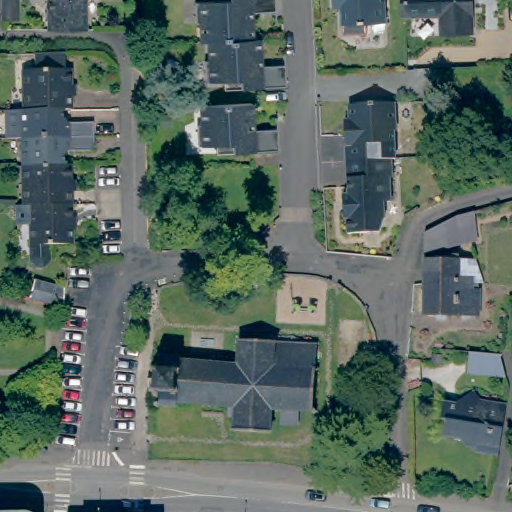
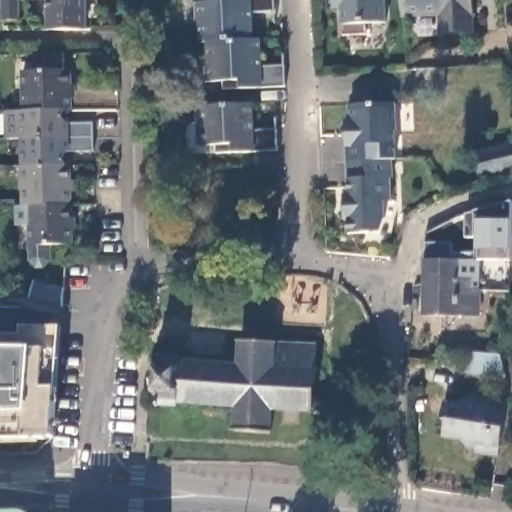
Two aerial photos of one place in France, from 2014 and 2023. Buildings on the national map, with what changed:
unchanged [(2,22),(2,0),(18,0),(18,22),(2,22)]
unchanged [(43,31),(43,0),(80,0),(80,31),(43,31)]
unchanged [(199,19),(193,20),(193,0),(273,0),(274,8),(249,8),(251,36),(208,38),(200,39),(199,19)]
unchanged [(384,2),(385,25),(366,26),(366,37),(342,38),(341,10),(334,11),(333,0),(380,0),(380,2),(384,2)]
unchanged [(438,20),(402,20),(402,0),(465,0),(466,36),(438,36),(438,20)]
unchanged [(260,61),(282,61),(283,83),(223,85),(223,76),(204,78),(203,56),(208,56),(208,38),(251,36),(258,35),(260,61)]
unchanged [(61,115),(22,116),(21,76),(34,75),(34,60),(64,59),(65,75),(68,75),(69,115),(61,115)]
unchanged [(242,130),(266,129),(268,150),(206,153),(205,145),(186,145),(186,125),(190,125),(189,106),(241,104),(242,130)]
unchanged [(394,104),(395,132),(393,132),(395,160),(391,161),(346,163),(344,123),(349,122),(348,107),(394,104)]
unchanged [(20,144),(4,144),(3,116),(22,116),(61,115),(62,124),(65,128),(92,128),(93,142),(20,144)]
unchanged [(93,156),(67,156),(63,162),(63,170),(21,171),(20,144),(93,142),(93,156)]
unchanged [(510,146),(512,154),(512,171),(480,178),(474,154),(510,146)]
unchanged [(392,179),(390,179),(391,203),(383,203),(384,220),(380,234),(347,235),(347,221),(344,221),(343,197),(348,197),(346,163),(391,161),(392,179)]
unchanged [(22,211),(21,171),(63,170),(68,170),(70,210),(22,211)]
unchanged [(471,238),(419,249),(420,228),(452,213),(466,209),(471,238)]
unchanged [(17,211),(22,211),(70,210),(71,250),(48,250),(49,265),(47,268),(43,272),(38,272),(34,268),(31,265),(30,230),(18,231),(17,211)]
unchanged [(453,256),(469,256),(475,275),(466,275),(466,287),(474,287),(474,311),(419,311),(419,280),(419,255),(453,256)]
unchanged [(64,290),(62,309),(32,300),(34,287),(64,290)]
new [(0,437),(0,336),(22,336),(23,326),(60,328),(56,387),(52,436),(24,436),(0,437)]
unchanged [(150,388),(151,382),(150,382),(151,367),(152,367),(152,361),(153,361),(155,362),(155,358),(160,359),(160,353),(158,351),(161,348),(164,351),(181,352),(180,356),(239,360),(240,335),(276,338),(276,339),(304,341),(304,334),(313,334),(313,340),(316,341),(314,361),(319,366),(315,370),(313,402),(317,407),(314,410),(311,406),(272,403),(270,429),(235,426),(236,410),(228,410),(229,400),(177,397),(176,401),(161,400),(157,402),(155,398),(158,397),(158,391),(154,391),(154,388),(151,388),(150,388)]
unchanged [(498,360),(505,383),(493,381),(467,379),(469,366),(470,357),(498,359),(498,360)]
unchanged [(472,451),(471,448),(462,446),(458,438),(440,435),(442,418),(438,417),(440,402),(450,404),(471,390),(478,400),(485,402),(500,404),(500,405),(492,454),(477,452),(472,451)]

